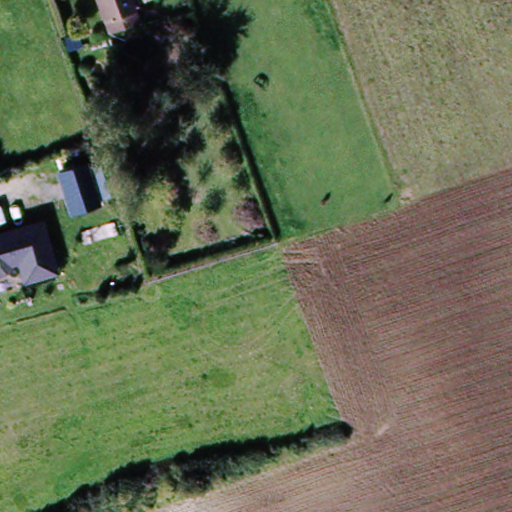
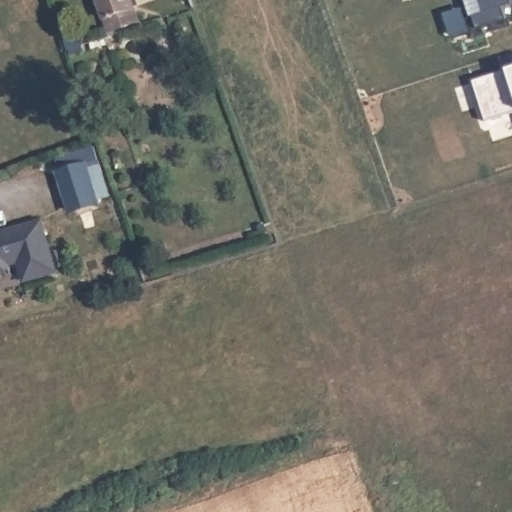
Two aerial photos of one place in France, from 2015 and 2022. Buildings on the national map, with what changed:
unchanged [(141,25),(110,37),(98,0),(133,0),(141,25)]
new [(512,2),(512,6),(503,8),(507,20),(477,30),(474,18),(485,13),(480,0),(511,0),(512,2)]
new [(474,82),(508,71),(512,70),(512,114),(485,121),(474,82)]
unchanged [(91,161),(102,202),(70,209),(61,168),(91,161)]
unchanged [(41,221),(55,270),(30,278),(25,260),(0,267),(0,233),(41,221)]

